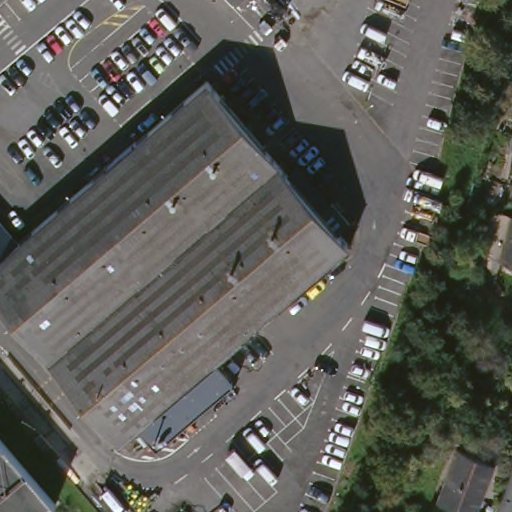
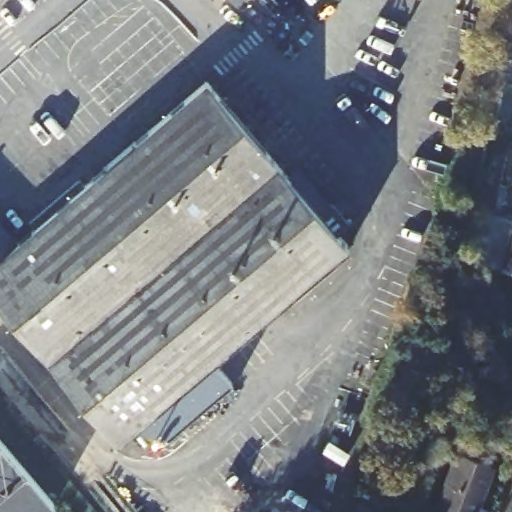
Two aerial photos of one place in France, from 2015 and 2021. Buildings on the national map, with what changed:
unchanged [(4,0),(0,3),(0,0),(4,0)]
unchanged [(122,442),(0,299),(0,216),(23,242),(212,79),(354,244),(122,442)]
unchanged [(512,269),(506,267),(509,255),(512,243),(512,269)]
unchanged [(66,500),(53,512),(0,512),(0,424),(66,500)]
unchanged [(471,452),(506,465),(490,512),(474,512),(453,505),(471,452)]

